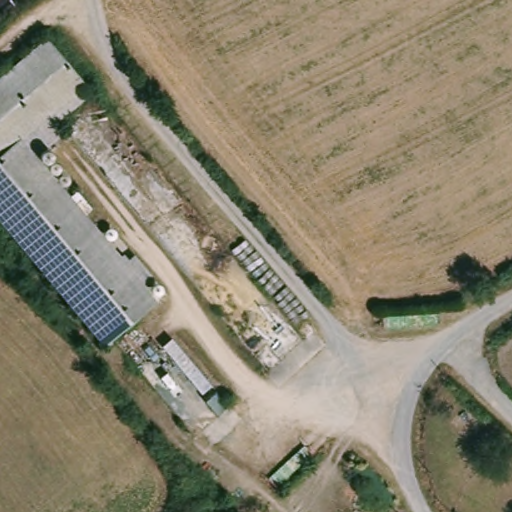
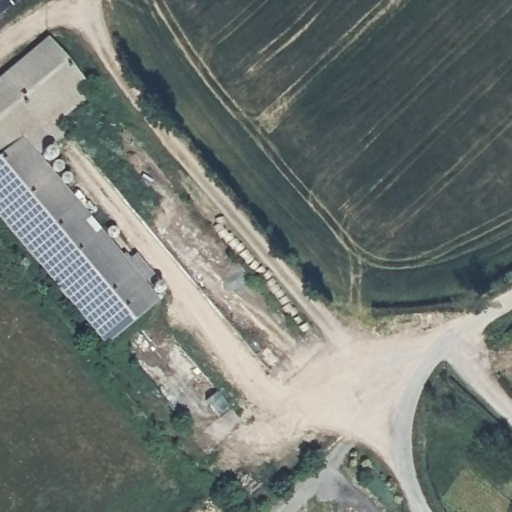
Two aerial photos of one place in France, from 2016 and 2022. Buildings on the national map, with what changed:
unchanged [(0,221),(0,77),(49,36),(89,81),(81,87),(89,96),(58,122),(59,122),(69,137),(53,149),(74,178),(64,187),(126,259),(134,254),(153,277),(146,283),(159,302),(104,345),(0,221)]

